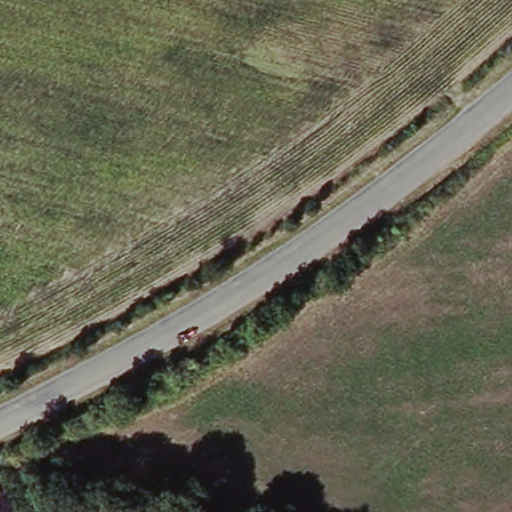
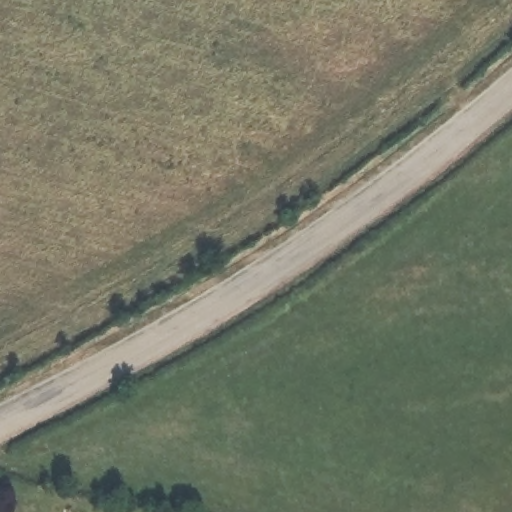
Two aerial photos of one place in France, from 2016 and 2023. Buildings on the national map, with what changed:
[]

